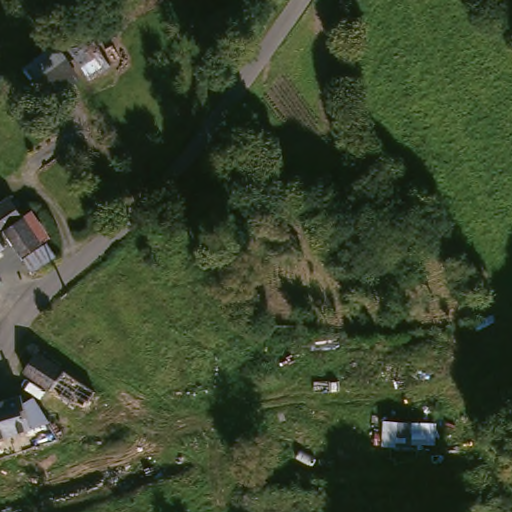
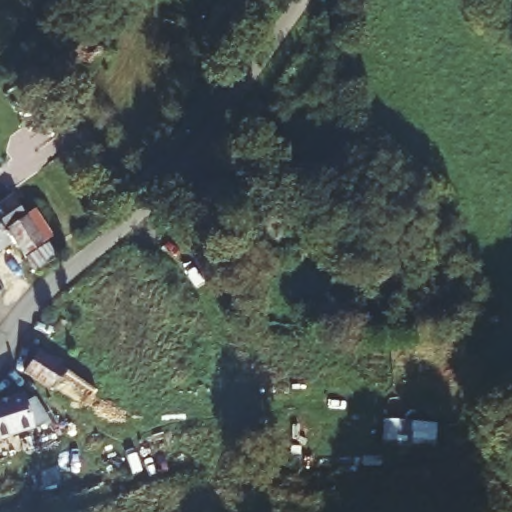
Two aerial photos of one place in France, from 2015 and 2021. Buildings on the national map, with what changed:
unchanged [(28,62),(63,39),(76,57),(44,82),(28,62)]
unchanged [(28,208),(36,204),(63,252),(36,267),(16,232),(11,236),(15,242),(0,253),(0,200),(15,189),(28,208)]
unchanged [(41,325),(52,335),(35,354),(25,346),(41,325)]
unchanged [(0,338),(0,336),(1,337),(0,338)]
unchanged [(83,402),(61,388),(33,372),(43,360),(48,352),(59,359),(74,368),(107,388),(99,405),(99,406),(84,399),(83,402)]
unchanged [(32,397),(47,391),(49,395),(59,417),(0,437),(0,397),(29,387),(32,397)]

